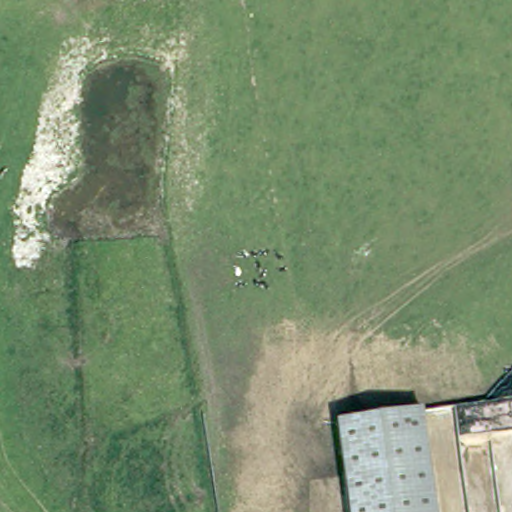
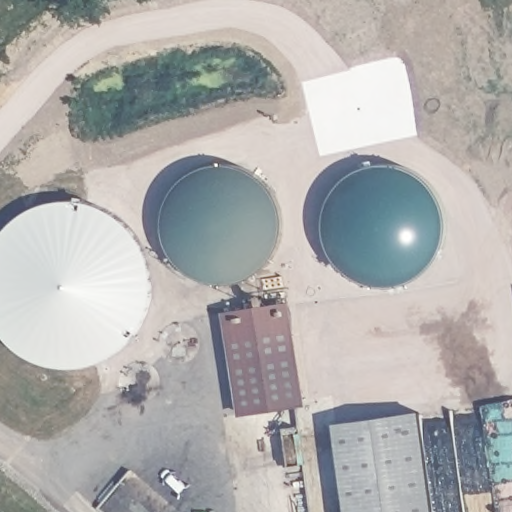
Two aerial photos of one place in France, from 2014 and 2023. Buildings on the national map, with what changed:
new [(169,187),(177,177),(186,169),(197,162),(209,159),(222,157),(234,159),(246,162),(257,169),(267,177),(274,187),(279,199),(282,212),(282,224),(279,237),(274,248),(267,258),(257,267),(246,273),(234,277),(222,278),(209,277),(197,273),(186,267),(177,258),(169,248),(164,237),(161,224),(161,212),(164,199),(169,187)]
new [(64,195),(75,195),(85,197),(95,200),(105,204),(114,209),(122,215),(130,222),(137,231),(142,240),(146,250),(149,260),(151,270),(152,280),(150,291),(149,301),(145,311),(140,321),(135,329),(127,337),(120,344),(111,350),(102,355),(92,358),(82,361),(72,362),(61,362),(50,361),(40,357),(31,353),(22,348),(13,342),(6,335),(0,328),(0,230),(1,228),(8,220),(16,213),(25,207),(34,202),(44,199),(54,196),(64,195)]
new [(302,398),(240,407),(225,307),(287,298),(302,398)]
unchanged [(381,412),(415,407),(429,512),(342,512),(329,419),(381,412)]

